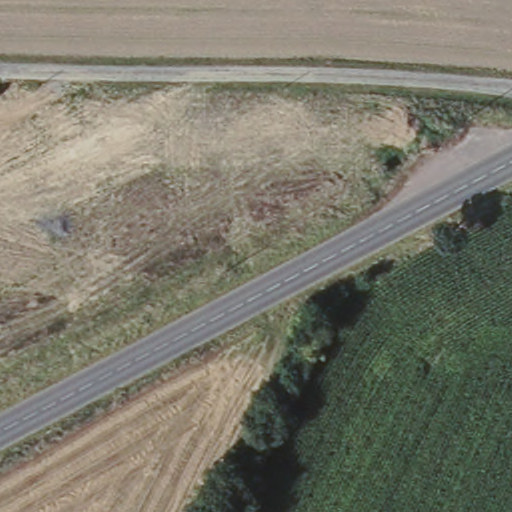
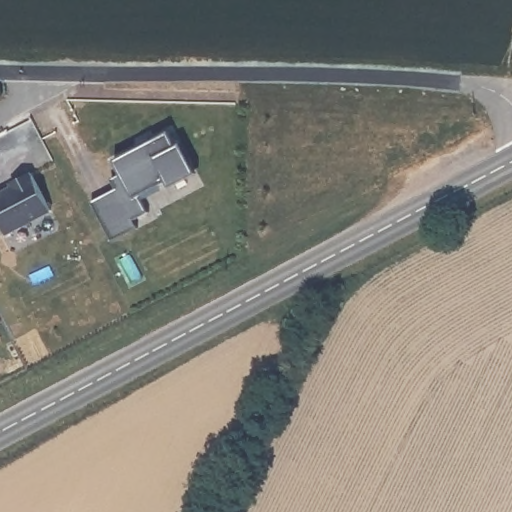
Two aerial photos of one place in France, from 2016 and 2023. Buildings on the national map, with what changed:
new [(115,189),(110,179),(120,174),(125,184),(114,160),(170,131),(190,170),(140,196),(148,212),(133,220),(137,228),(111,241),(105,227),(90,201),(115,189)]
new [(6,233),(0,221),(0,194),(12,188),(10,183),(30,173),(50,210),(6,233)]

